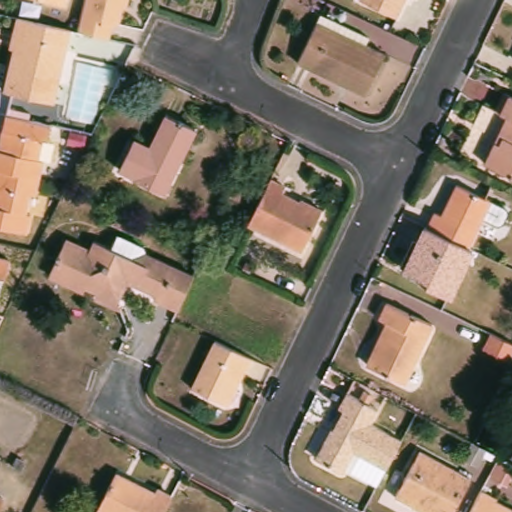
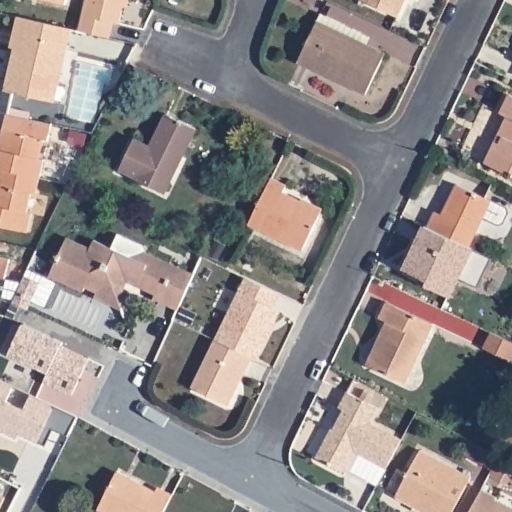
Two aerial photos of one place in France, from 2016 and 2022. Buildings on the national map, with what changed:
unchanged [(41,0),(68,0),(66,6),(41,0)]
unchanged [(123,7),(119,25),(114,24),(111,38),(79,31),(87,0),(131,0),(129,8),(123,7)]
unchanged [(406,0),(397,19),(359,0),(406,0)]
unchanged [(18,17),(73,30),(68,52),(12,40),(18,17)]
unchanged [(298,67),(321,20),(370,42),(366,50),(386,59),(367,100),(348,91),(327,81),(298,67)]
unchanged [(56,105),(5,93),(16,51),(10,50),(12,40),(68,52),(56,105)]
unchanged [(496,114),(507,95),(512,98),(512,121),(496,114)]
unchanged [(162,195),(131,181),(132,179),(120,173),(134,143),(148,151),(165,116),(194,130),(162,195)]
unchanged [(41,161),(45,162),(41,181),(0,171),(0,141),(2,130),(4,131),(7,117),(54,127),(50,142),(45,140),(41,161)]
unchanged [(486,166),(497,144),(501,146),(512,122),(512,178),(486,166)]
unchanged [(28,215),(33,216),(29,235),(0,229),(0,171),(41,181),(37,196),(33,195),(28,215)]
unchanged [(285,187),(281,194),(300,204),(302,201),(321,211),(301,251),(249,225),(270,180),(285,187)]
unchanged [(436,215),(443,220),(459,188),(493,204),(470,250),(428,230),(436,215)]
unchanged [(451,301),(427,290),(431,285),(406,273),(426,229),(428,230),(470,250),(474,251),(451,301)]
unchanged [(106,308),(112,295),(110,293),(96,297),(86,292),(84,297),(48,281),(66,243),(98,258),(102,249),(135,264),(150,260),(194,281),(179,315),(152,303),(155,296),(143,290),(141,294),(129,288),(123,299),(118,313),(106,308)]
unchanged [(8,280),(0,278),(0,258),(12,261),(8,280)]
new [(245,279),(278,295),(272,310),(280,313),(257,362),(252,360),(217,343),(215,343),(245,279)]
unchanged [(408,386),(372,368),(381,347),(385,350),(395,328),(381,321),(389,305),(436,327),(408,386)]
new [(49,373),(9,355),(23,326),(62,344),(60,348),(89,360),(72,396),(45,383),(49,373)]
unchanged [(483,350),(492,333),(512,343),(512,361),(511,362),(511,363),(483,350)]
unchanged [(245,375),(240,372),(224,406),(193,390),(217,343),(252,360),(245,375)]
new [(45,445),(18,432),(16,438),(0,431),(0,382),(12,387),(6,400),(23,410),(30,395),(75,416),(67,435),(53,430),(45,445)]
unchanged [(385,468),(377,485),(345,468),(343,473),(315,458),(330,430),(334,432),(344,411),(338,408),(346,393),(378,409),(369,425),(401,440),(385,468)]
unchanged [(481,443),(487,429),(500,435),(494,449),(481,443)]
unchanged [(413,511),(414,508),(395,498),(420,451),(471,479),(454,512),(414,512),(413,511)]
unchanged [(95,510),(114,475),(153,495),(155,490),(170,498),(164,512),(99,512),(95,510)]
unchanged [(483,494),(497,502),(495,505),(508,512),(473,512),(483,494)]
unchanged [(0,500),(7,504),(4,512),(0,512),(0,500)]

